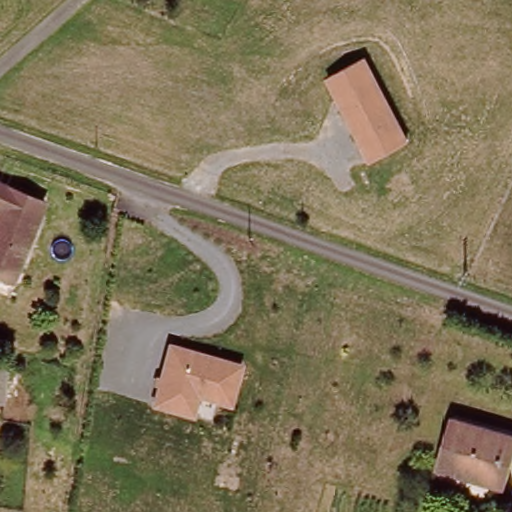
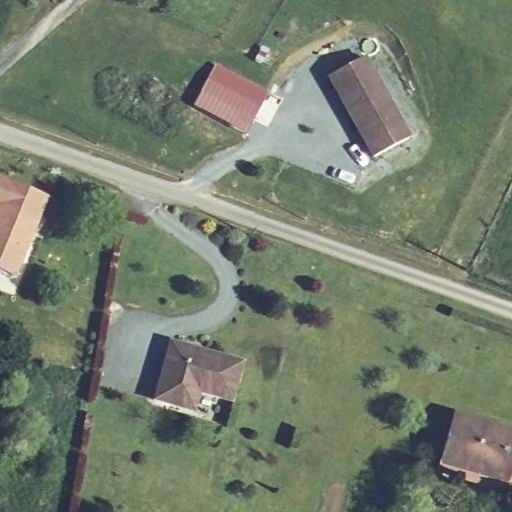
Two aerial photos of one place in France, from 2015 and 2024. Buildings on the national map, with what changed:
unchanged [(326,77),(370,55),(413,139),(372,161),(326,77)]
new [(250,122),(201,94),(215,66),(267,93),(250,122)]
unchanged [(0,179),(37,196),(42,197),(33,219),(8,277),(0,274),(0,179)]
unchanged [(168,338),(245,359),(235,405),(200,396),(195,416),(152,405),(168,338)]
unchanged [(0,380),(0,358),(5,360),(0,380)]
unchanged [(455,417),(512,430),(512,479),(444,465),(455,417)]

